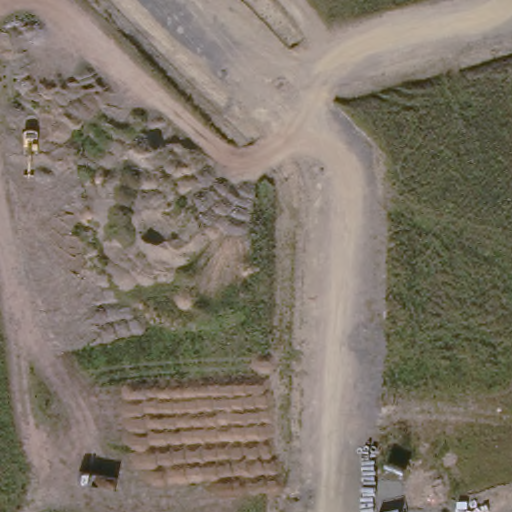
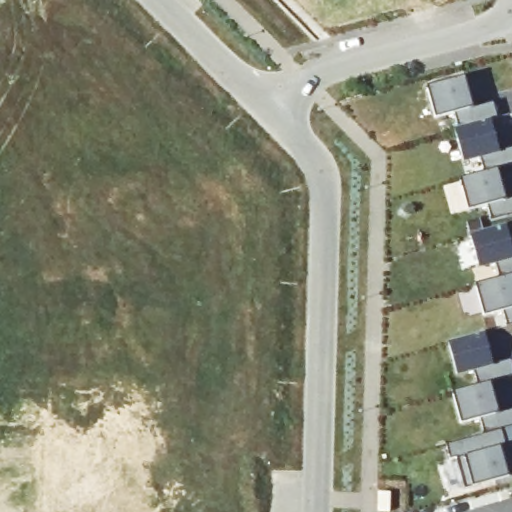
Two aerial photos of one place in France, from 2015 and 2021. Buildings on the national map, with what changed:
new [(468,211),(460,179),(485,172),(481,159),(463,164),(454,129),(459,127),(455,112),(435,117),(427,86),(465,76),(473,106),(492,101),(497,117),(490,119),(498,152),(512,148),(512,164),(497,168),(505,198),(512,196),(512,213),(490,219),(487,206),(468,211)]
new [(484,315),(476,284),(500,278),(496,265),(478,270),(469,236),(506,226),(512,248),(512,324),(506,326),(502,311),(484,315)]
new [(458,462),(452,463),(446,443),(484,433),(480,417),(462,422),(453,392),(478,385),(475,370),(456,375),(448,342),(485,332),(494,364),(510,360),(512,368),(512,374),(490,380),(499,411),(512,408),(512,426),(501,429),(512,469),(512,475),(510,475),(473,485),(465,487),(458,462)]

